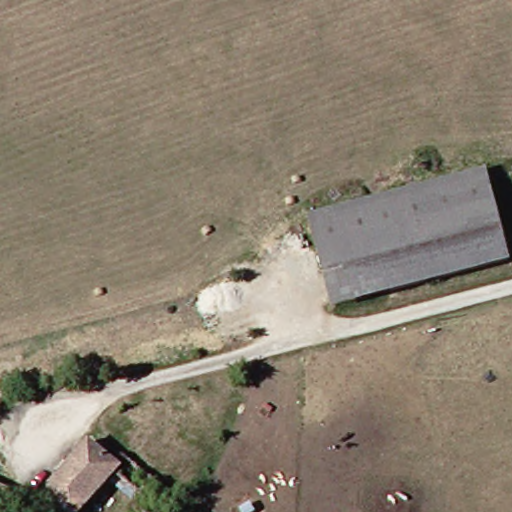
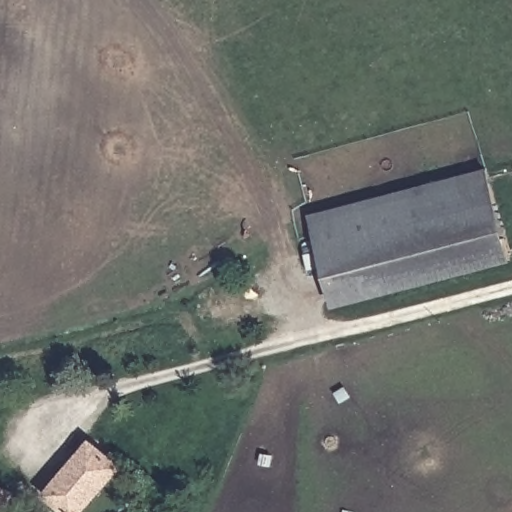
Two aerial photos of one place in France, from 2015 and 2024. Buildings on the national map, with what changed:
unchanged [(309,216),(482,173),(506,260),(333,307),(309,216)]
unchanged [(52,512),(42,505),(85,450),(111,470),(115,472),(106,482),(83,512),(52,512)]

